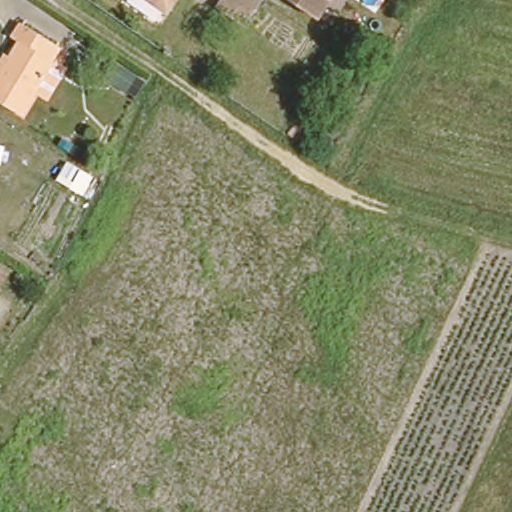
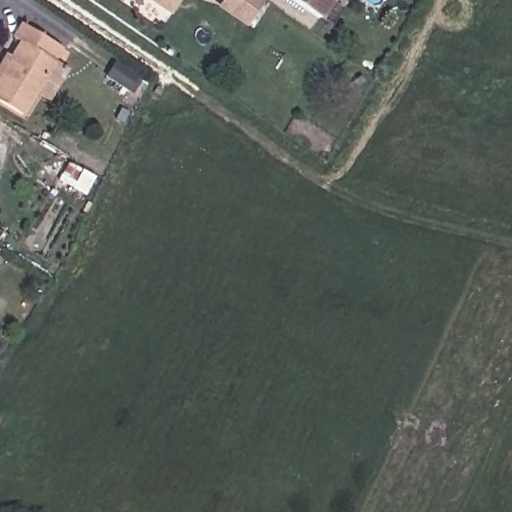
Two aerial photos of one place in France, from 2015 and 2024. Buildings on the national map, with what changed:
unchanged [(163,8),(151,0),(169,0),(163,8)]
unchanged [(245,24),(219,6),(223,0),(261,0),(245,24)]
unchanged [(314,14),(293,0),(324,0),(314,14)]
unchanged [(45,95),(31,87),(17,110),(0,101),(0,51),(2,48),(7,51),(15,37),(8,33),(17,18),(58,42),(50,55),(64,63),(45,95)]
unchanged [(287,134),(293,126),(302,133),(297,141),(287,134)]
unchanged [(72,154),(65,149),(64,151),(51,144),(59,130),(72,138),(70,141),(77,145),(72,154)]
unchanged [(30,166),(22,160),(26,155),(34,161),(30,166)]
unchanged [(54,189),(65,168),(78,174),(66,196),(54,189)]

